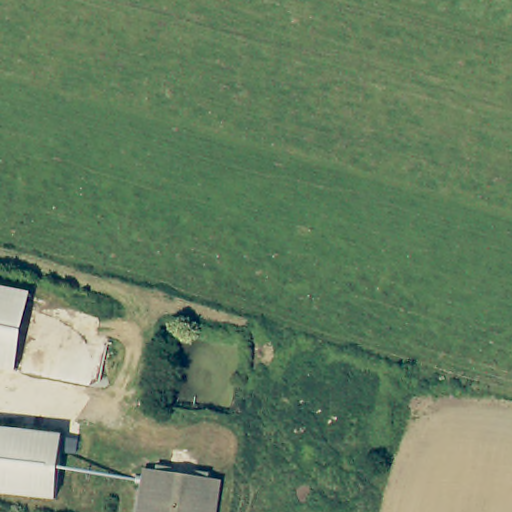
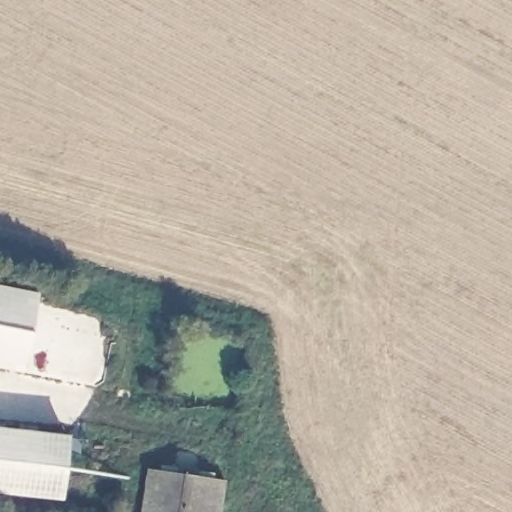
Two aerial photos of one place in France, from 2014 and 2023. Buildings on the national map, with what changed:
unchanged [(0,370),(0,287),(36,294),(19,374),(0,370)]
unchanged [(54,497),(0,492),(0,430),(59,435),(54,497)]
unchanged [(218,512),(138,512),(144,470),(222,481),(218,512)]

